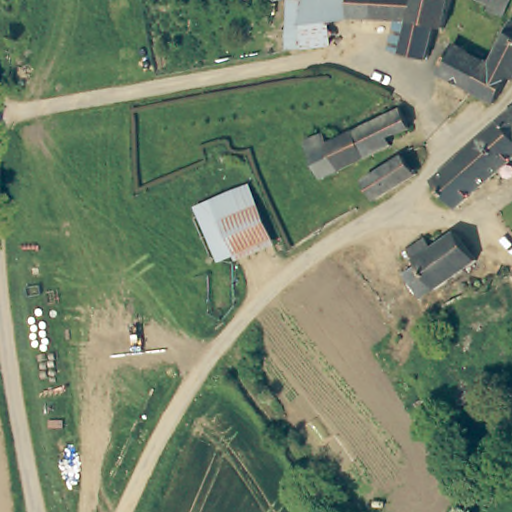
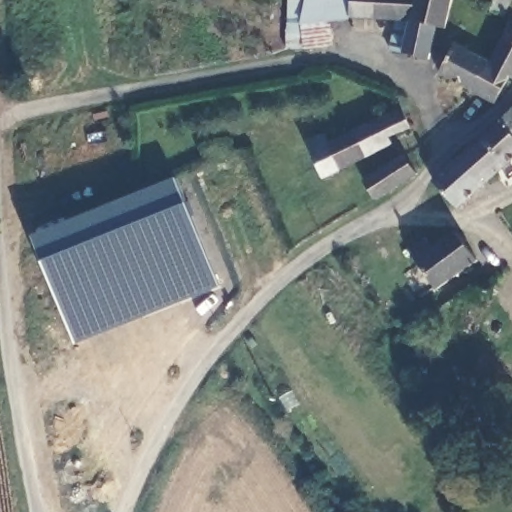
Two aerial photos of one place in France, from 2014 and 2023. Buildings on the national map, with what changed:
unchanged [(333,47),(308,49),(283,50),(280,0),(353,0),(354,21),(331,22),(333,47)]
unchanged [(438,29),(430,61),(393,53),(394,45),(407,47),(411,21),(354,21),(353,0),(452,0),(444,29),(438,29)]
unchanged [(473,0),(509,0),(503,14),(475,4),(472,4),(473,0)]
unchanged [(492,103),(469,91),(485,64),(490,54),(493,49),(507,23),(512,25),(512,77),(506,76),(492,103)]
unchanged [(436,75),(451,44),(485,64),(469,91),(436,75)]
unchanged [(403,107),(411,125),(390,135),(395,143),(367,155),(354,129),(403,107)]
unchanged [(501,119),(512,109),(512,157),(484,183),(459,154),(501,119)]
unchanged [(324,176),(307,140),(326,131),(330,139),(354,129),(367,155),(324,176)]
unchanged [(437,177),(459,154),(484,183),(460,204),(437,177)]
unchanged [(361,184),(371,177),(401,156),(412,173),(407,177),(390,189),(373,200),(361,184)]
new [(136,198),(181,182),(221,289),(75,344),(36,235),(136,198)]
unchanged [(419,260),(410,248),(427,235),(434,246),(459,229),(479,259),(428,294),(409,269),(419,260)]

